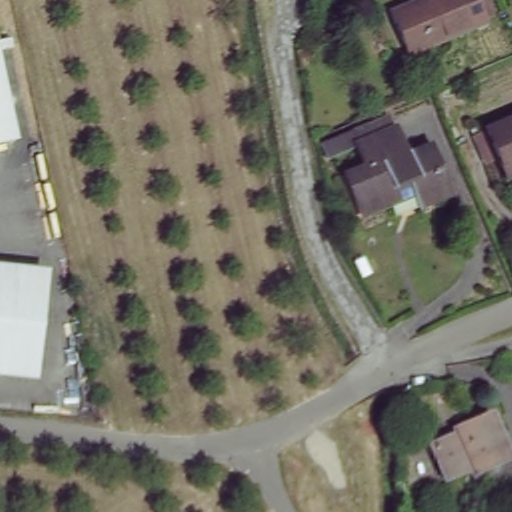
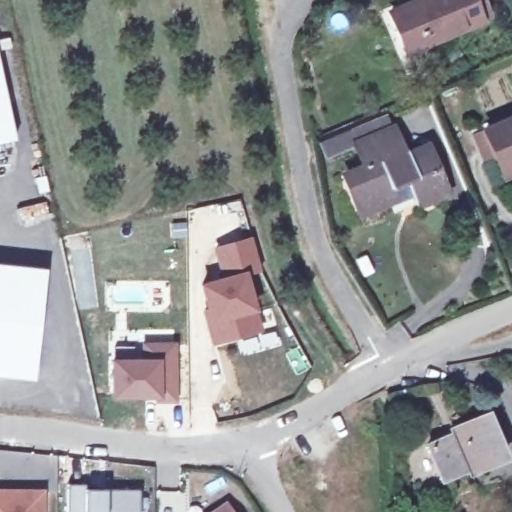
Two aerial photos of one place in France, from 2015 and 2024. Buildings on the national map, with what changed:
unchanged [(476,0),(484,19),(432,43),(427,35),(405,43),(392,14),(425,0),(476,0)]
unchanged [(0,146),(0,71),(16,144),(0,146)]
unchanged [(397,118),(405,142),(411,141),(416,149),(430,141),(449,184),(423,197),(414,180),(366,201),(357,177),(375,170),(358,137),(397,118)]
unchanged [(512,123),(512,170),(506,172),(491,131),(512,123)]
new [(226,279),(217,248),(253,239),(262,270),(245,275),(261,332),(215,345),(209,322),(213,321),(203,286),(226,279)]
unchanged [(25,379),(0,376),(0,266),(37,270),(25,379)]
new [(175,346),(176,401),(159,401),(159,397),(115,398),(115,363),(146,363),(146,346),(175,346)]
unchanged [(505,453),(441,470),(432,439),(454,431),(454,421),(492,409),(505,453)]
new [(87,486),(88,491),(142,491),(142,512),(69,512),(69,486),(87,486)]
new [(42,512),(0,512),(0,493),(42,493),(42,512)]
new [(226,500),(234,512),(207,512),(226,500)]

